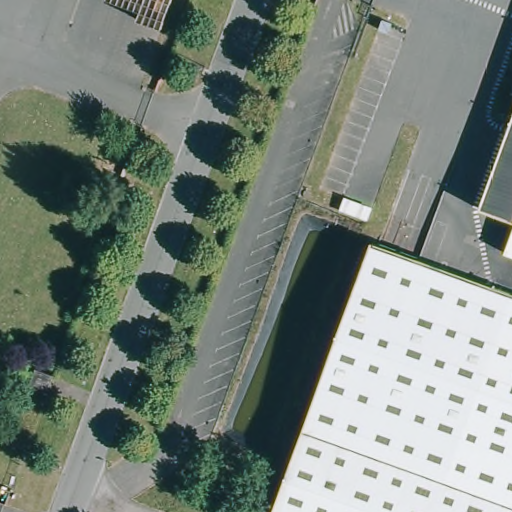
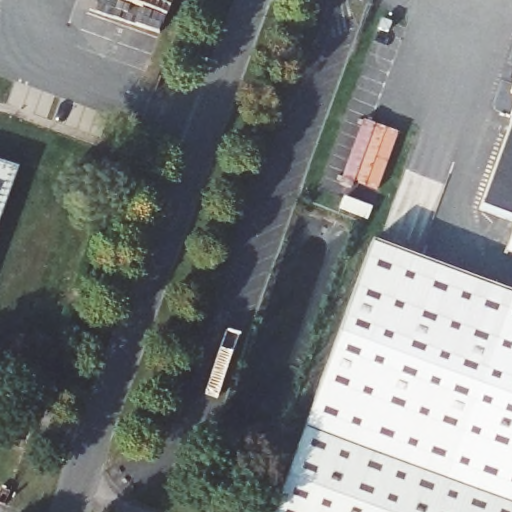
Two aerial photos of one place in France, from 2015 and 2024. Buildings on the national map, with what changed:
unchanged [(510,222),(479,212),(512,120),(512,257),(498,253),(510,222)]
new [(0,219),(0,164),(18,170),(0,219)]
unchanged [(512,512),(269,512),(372,247),(512,299),(512,512)]

